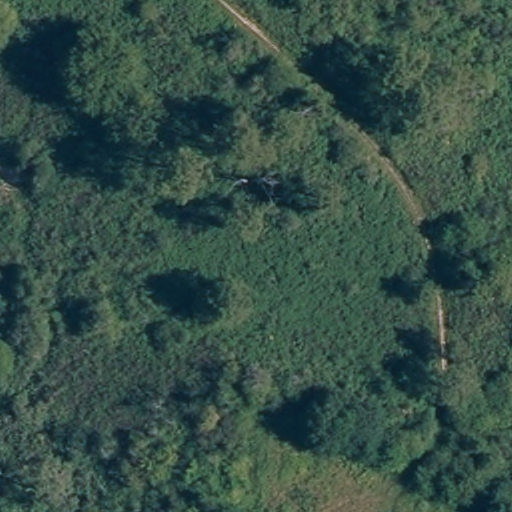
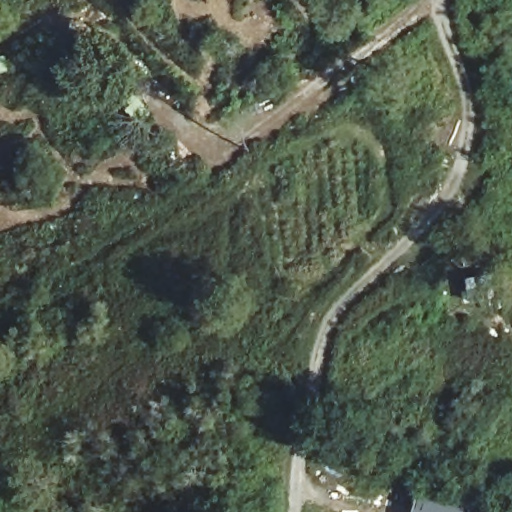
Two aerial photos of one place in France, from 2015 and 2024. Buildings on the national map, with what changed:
new [(468,509),(467,512),(417,512),(420,497),(468,509)]

